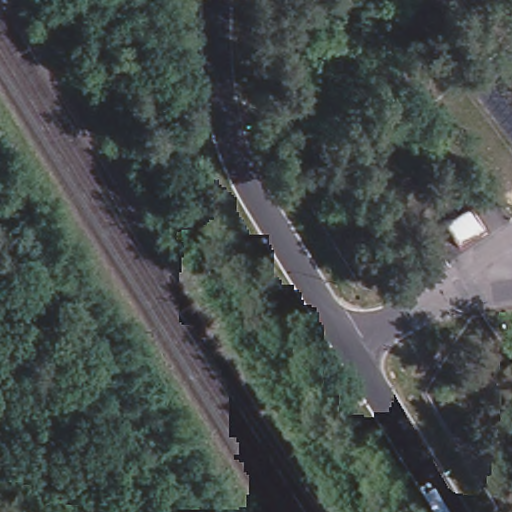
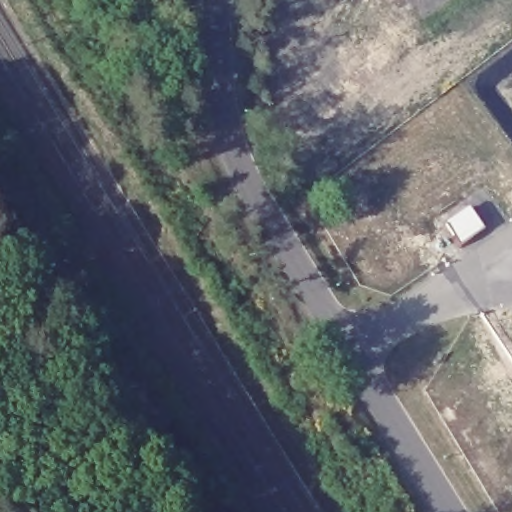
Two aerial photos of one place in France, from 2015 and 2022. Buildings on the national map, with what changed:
unchanged [(474,207),(488,226),(475,235),(477,238),(464,247),(455,236),(459,234),(450,223),(474,207)]
unchanged [(384,272),(425,243),(437,258),(394,289),(384,272)]

